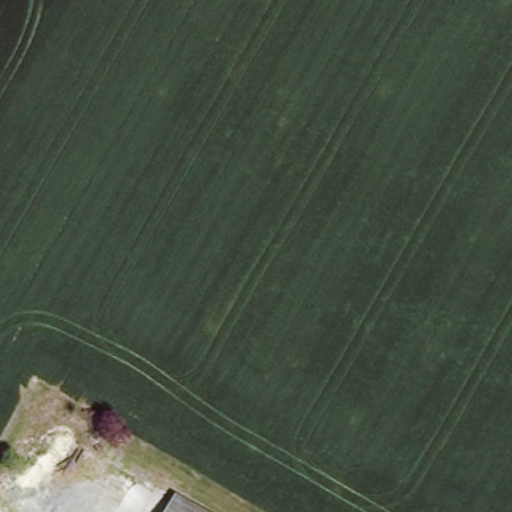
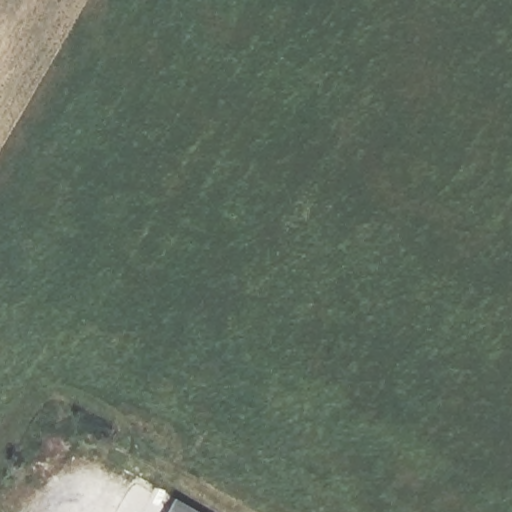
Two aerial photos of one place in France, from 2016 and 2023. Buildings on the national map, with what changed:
unchanged [(171,511),(172,512),(171,512),(171,511)]

